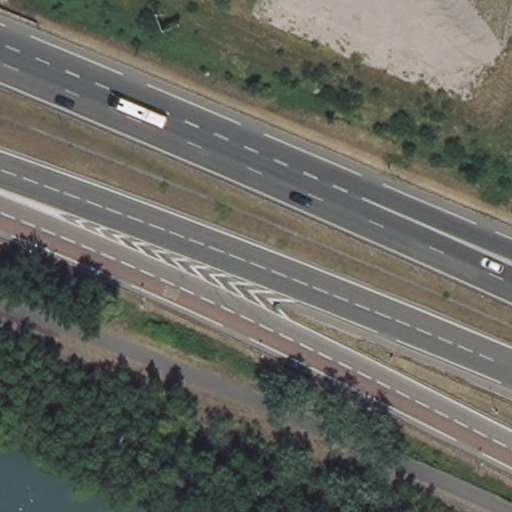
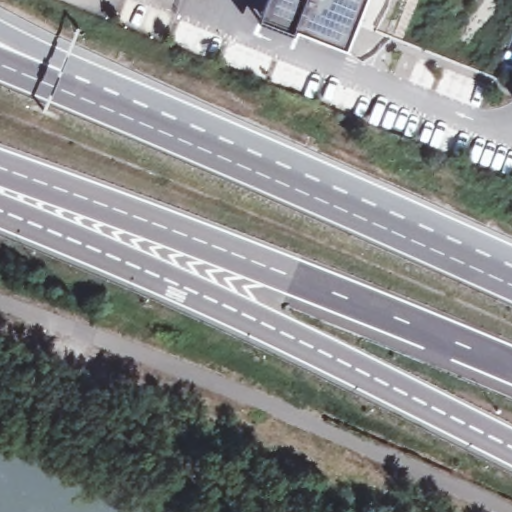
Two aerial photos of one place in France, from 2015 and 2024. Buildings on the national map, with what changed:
new [(295,40),(259,27),(269,0),(368,0),(348,52),(299,32),(295,40)]

